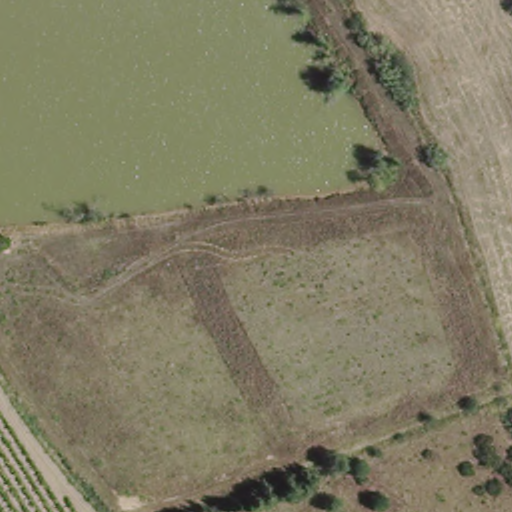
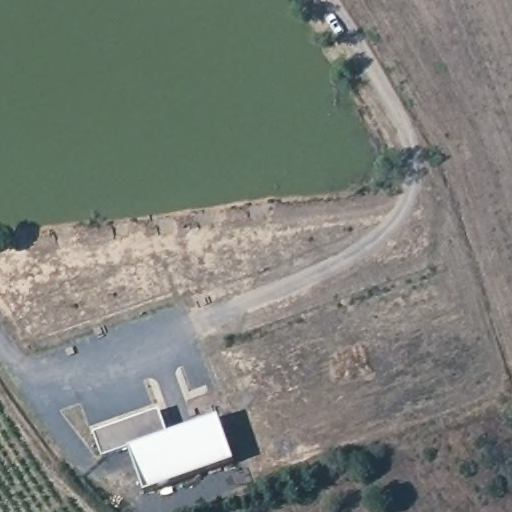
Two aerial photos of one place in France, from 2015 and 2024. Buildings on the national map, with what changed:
new [(148,492),(130,446),(104,458),(96,434),(160,411),(169,434),(219,417),(234,462),(148,492)]

